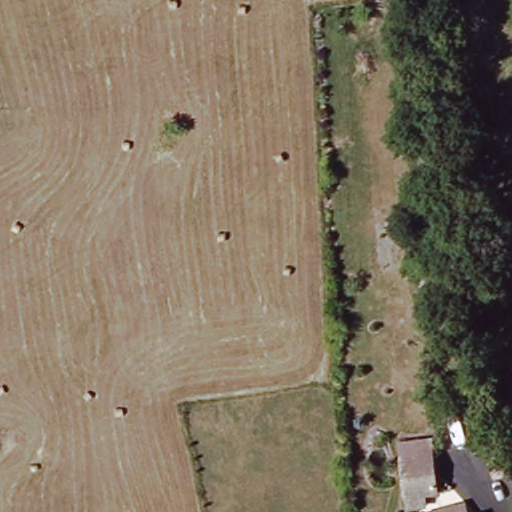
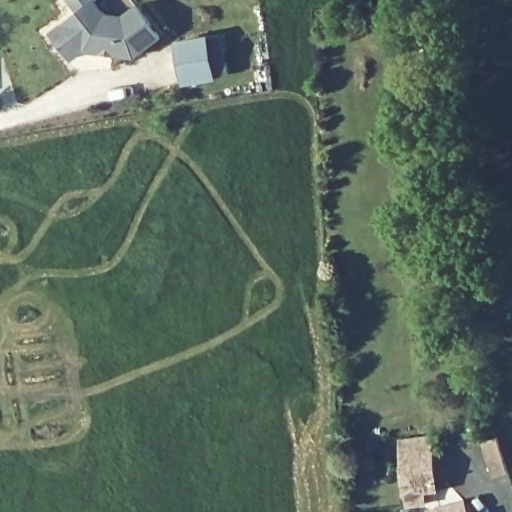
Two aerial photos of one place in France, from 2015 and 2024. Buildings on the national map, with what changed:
new [(70,0),(93,0),(103,14),(121,17),(135,6),(159,36),(132,57),(82,50),(70,59),(50,32),(78,11),(70,0)]
new [(203,38),(211,79),(181,84),(174,43),(203,38)]
new [(508,468),(493,472),(485,440),(499,435),(508,468)]
demolished [(512,477),(504,480),(495,447),(510,442),(512,450),(512,477)]
unchanged [(439,446),(445,491),(431,493),(433,509),(411,512),(406,457),(439,446)]
unchanged [(470,507),(471,512),(440,512),(470,507)]

